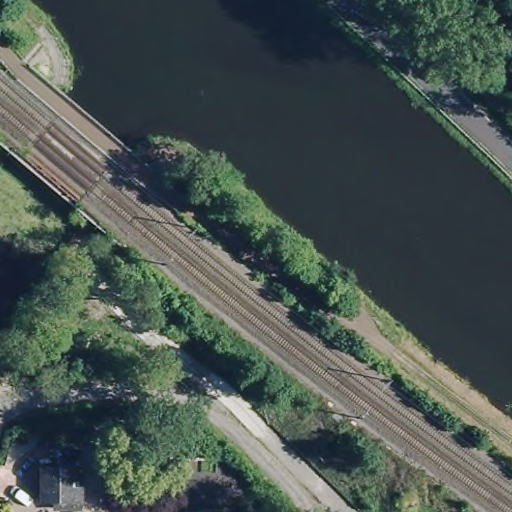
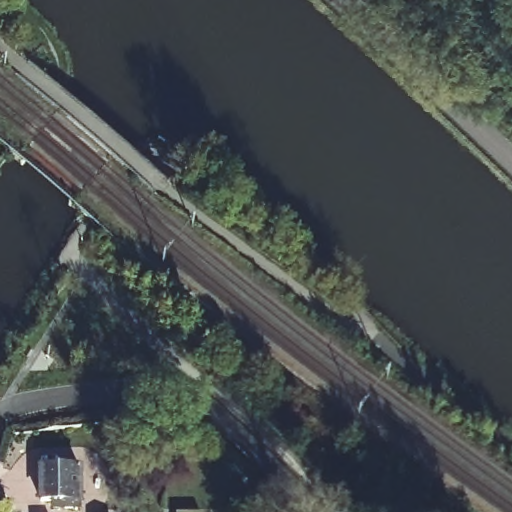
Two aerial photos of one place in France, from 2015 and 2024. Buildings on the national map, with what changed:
unchanged [(80,470),(80,512),(66,512),(66,508),(37,507),(38,479),(40,469),(80,470)]
unchanged [(205,509),(205,512),(180,512),(180,509),(205,509)]

